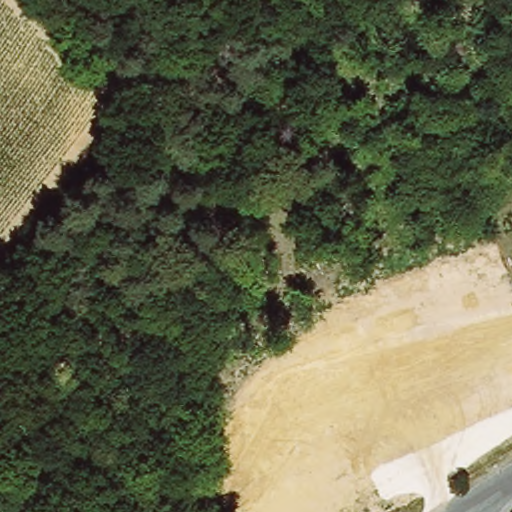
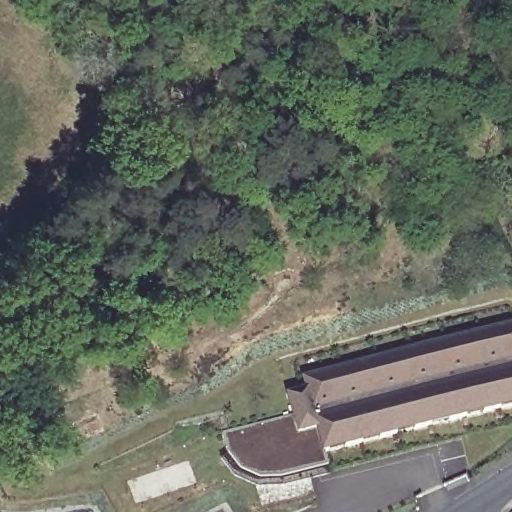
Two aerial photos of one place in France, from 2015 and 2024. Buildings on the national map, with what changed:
new [(279,479),(258,479),(239,470),(227,454),(222,433),(292,415),(287,395),(306,390),(305,387),(303,378),(325,372),(342,367),(360,363),(376,359),(394,354),(411,350),(428,346),(446,341),(463,337),(480,332),(498,328),(512,325),(512,405),(500,407),(483,412),(465,416),(448,420),(430,425),(413,429),(396,434),(379,438),(361,443),(345,447),(328,451),(323,453),(327,467),(308,472),(279,479)]

